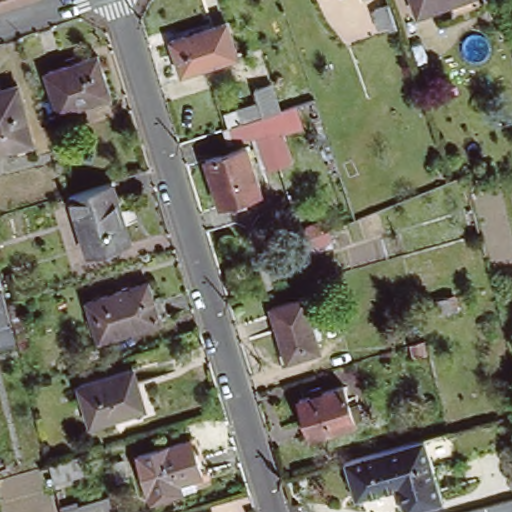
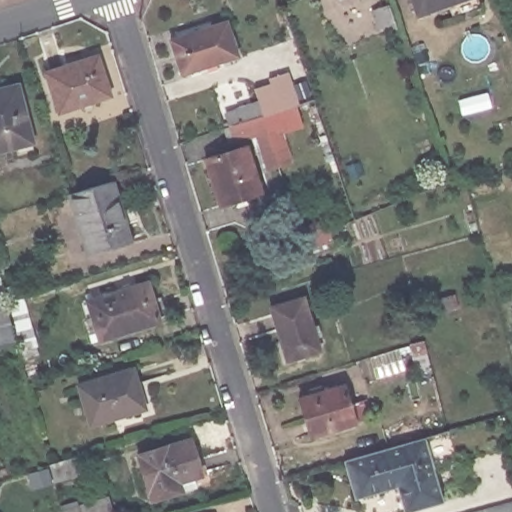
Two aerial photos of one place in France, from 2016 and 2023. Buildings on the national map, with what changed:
unchanged [(5,8),(4,5),(2,0),(28,0),(5,8)]
unchanged [(411,0),(459,0),(417,15),(411,0)]
unchanged [(387,24),(381,26),(375,8),(387,4),(395,27),(389,29),(387,24)]
unchanged [(175,41),(230,23),(242,58),(185,76),(175,41)]
unchanged [(83,107),(60,115),(46,75),(97,57),(109,90),(112,98),(83,107)]
unchanged [(303,126),(285,132),(293,162),(262,172),(252,137),(227,143),(221,126),(225,125),(222,112),(257,101),(253,87),(272,82),(280,109),(297,104),(303,126)]
unchanged [(32,139),(0,148),(0,88),(17,83),(32,139)]
unchanged [(209,161),(250,148),(265,195),(225,208),(209,161)]
unchanged [(112,183),(131,244),(89,257),(70,195),(72,195),(112,183)]
unchanged [(87,304),(149,284),(162,324),(100,343),(87,304)]
unchanged [(0,299),(5,297),(17,347),(0,352),(0,299)]
unchanged [(444,299),(454,297),(457,309),(447,311),(444,299)]
unchanged [(304,300),(319,352),(285,362),(270,310),(304,300)]
unchanged [(422,341),(425,354),(414,357),(410,345),(422,341)]
unchanged [(79,386),(133,369),(139,385),(134,387),(141,411),(92,427),(79,386)]
unchanged [(299,400),(343,386),(355,424),(310,438),(299,400)]
unchanged [(182,489),(152,498),(137,452),(190,435),(202,472),(193,475),(196,484),(182,489)]
unchanged [(346,461),(425,438),(444,503),(416,512),(406,512),(399,488),(387,492),(357,500),(346,461)]
unchanged [(109,499),(113,512),(79,512),(78,510),(109,499)]

